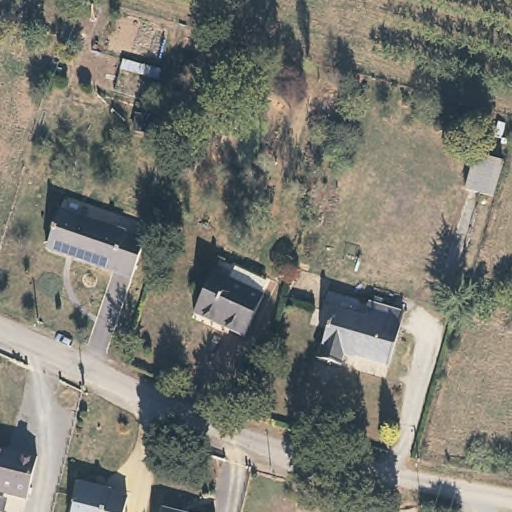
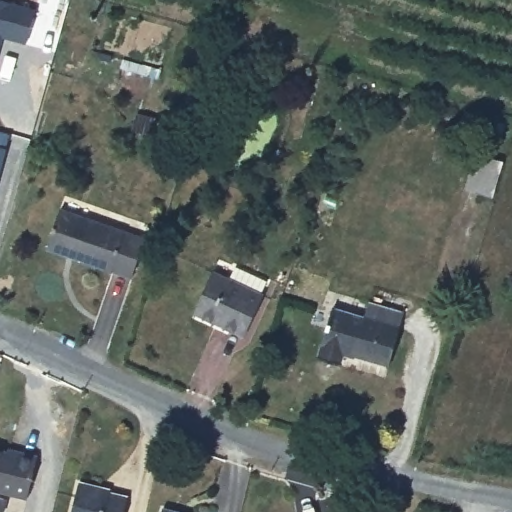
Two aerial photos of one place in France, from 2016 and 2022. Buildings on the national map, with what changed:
new [(26,42),(1,36),(0,43),(0,0),(6,0),(35,7),(26,42)]
unchanged [(501,161),(491,195),(464,188),(473,152),(501,161)]
unchanged [(145,241),(131,280),(46,251),(61,214),(145,241)]
unchanged [(236,266),(265,278),(260,292),(264,294),(247,334),(194,311),(213,272),(230,279),(236,266)]
unchanged [(403,317),(388,369),(343,355),(339,368),(318,361),(333,311),(361,320),(366,305),(403,317)]
unchanged [(15,448),(36,453),(26,497),(0,491),(0,449),(14,452),(15,448)]
unchanged [(121,512),(68,512),(76,474),(93,477),(93,481),(126,489),(121,512)]
unchanged [(180,512),(164,512),(165,508),(180,512)]

